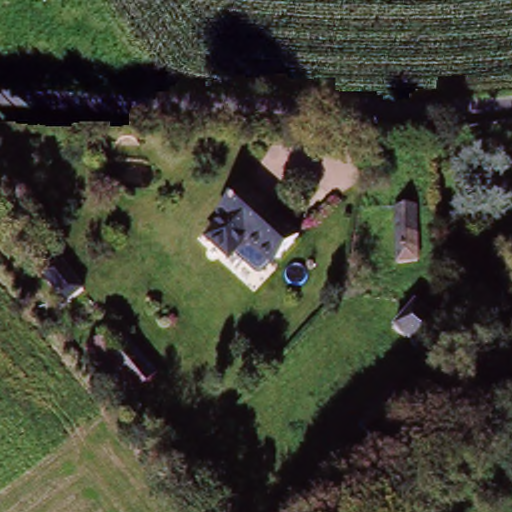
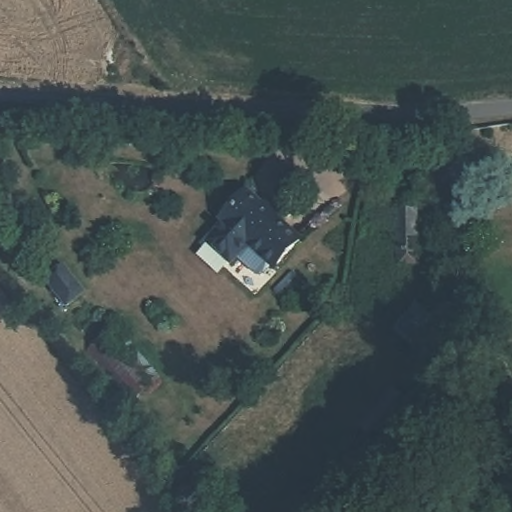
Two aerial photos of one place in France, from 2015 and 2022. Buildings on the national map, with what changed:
unchanged [(303,234),(272,267),(214,220),(246,185),(303,234)]
unchanged [(409,208),(419,253),(399,257),(389,213),(409,208)]
unchanged [(51,286),(68,273),(80,290),(64,302),(51,286)]
unchanged [(445,335),(430,353),(398,323),(416,305),(445,335)]
unchanged [(131,338),(158,370),(125,397),(99,366),(131,338)]
unchanged [(406,400),(361,448),(346,435),(391,385),(406,400)]

